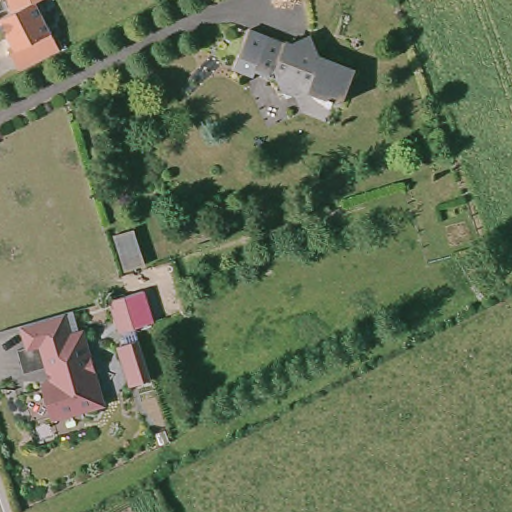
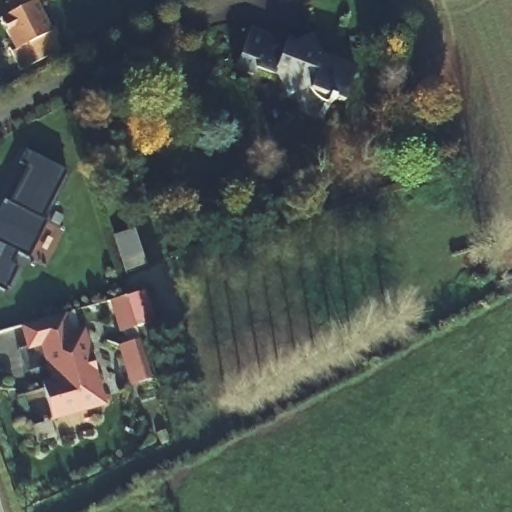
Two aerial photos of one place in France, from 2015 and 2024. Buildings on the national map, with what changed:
unchanged [(45,0),(41,2),(15,12),(10,0),(45,0)]
unchanged [(8,45),(13,42),(3,18),(15,12),(41,2),(65,50),(23,71),(8,45)]
unchanged [(274,32),(296,40),(318,31),(327,52),(363,65),(351,98),(315,85),(294,93),(284,73),(263,65),(261,71),(242,65),(256,26),(274,32)]
new [(22,168),(14,164),(21,150),(63,171),(38,219),(43,222),(23,259),(13,253),(7,264),(14,268),(1,293),(0,292),(0,201),(4,203),(22,168)]
unchanged [(143,261),(125,268),(113,233),(131,227),(143,261)]
unchanged [(146,292),(154,322),(116,332),(109,302),(146,292)]
unchanged [(65,314),(70,334),(83,330),(104,406),(51,421),(40,381),(47,379),(43,368),(23,372),(16,348),(24,346),(18,327),(65,314)]
unchanged [(153,380),(128,387),(115,346),(139,339),(153,380)]

